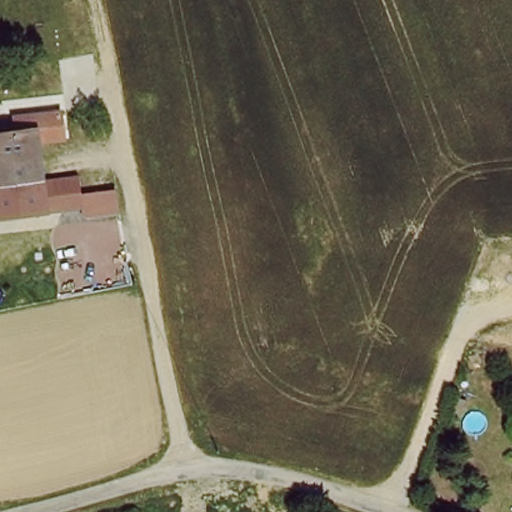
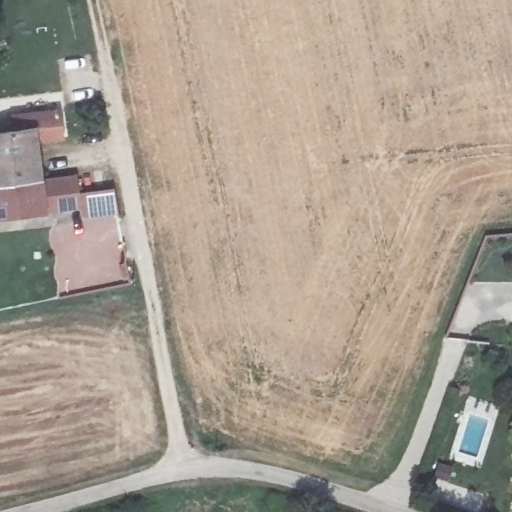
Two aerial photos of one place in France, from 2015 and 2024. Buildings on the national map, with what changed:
unchanged [(55,123),(56,132),(37,135),(38,154),(41,176),(43,199),(66,196),(68,210),(0,220),(0,129),(55,123)]

